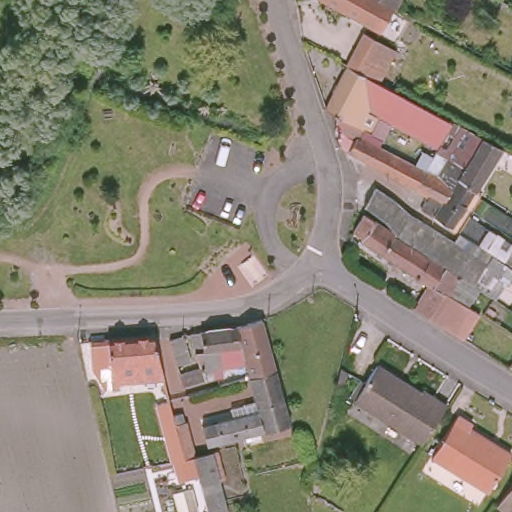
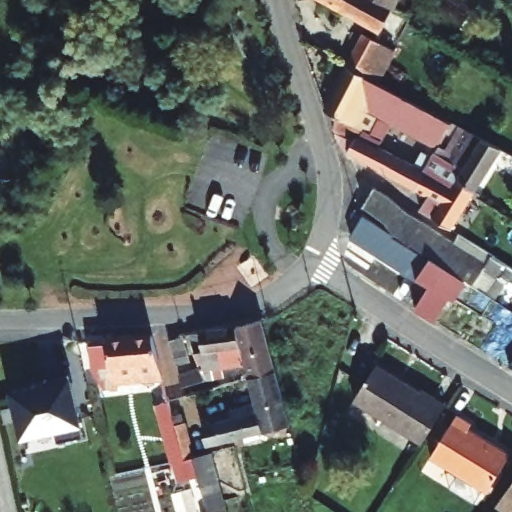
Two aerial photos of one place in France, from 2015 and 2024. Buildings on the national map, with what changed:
unchanged [(400,7),(388,30),(335,0),(388,0),(400,7)]
unchanged [(402,7),(400,7),(388,0),(405,0),(402,7)]
unchanged [(427,169),(440,147),(365,103),(355,122),(331,109),(364,32),(387,45),(370,75),(505,149),(462,219),(349,155),(362,135),(427,169)]
unchanged [(472,251),(442,296),(353,236),(375,189),(472,251)]
unchanged [(477,252),(490,230),(499,235),(512,243),(512,250),(512,286),(502,281),(494,291),(482,281),(470,306),(479,312),(464,338),(414,308),(425,284),(442,296),(472,251),(477,252)]
unchanged [(185,383),(182,371),(204,365),(199,347),(208,345),(204,329),(240,322),(244,322),(265,317),(279,365),(252,372),(248,356),(230,361),(219,364),(221,372),(210,377),(185,383)]
unchanged [(158,334),(168,372),(144,374),(143,377),(124,378),(125,383),(114,383),(112,361),(97,362),(95,337),(151,334),(158,334)]
unchanged [(425,442),(357,397),(379,362),(447,407),(425,442)]
unchanged [(512,363),(512,366),(510,365),(512,363)]
unchanged [(267,422),(268,427),(212,441),(207,421),(249,411),(247,402),(259,398),(252,372),(279,365),(282,376),(292,416),(267,422)]
new [(44,383),(42,380),(67,374),(81,435),(56,441),(53,427),(22,435),(11,391),(44,383)]
unchanged [(159,383),(170,380),(180,416),(167,418),(159,383)]
unchanged [(190,456),(180,416),(187,413),(197,454),(190,456)]
unchanged [(459,415),(472,423),(468,428),(510,457),(485,493),(430,454),(459,415)]
unchanged [(216,448),(218,457),(224,477),(205,483),(197,454),(216,448)]
unchanged [(512,487),(512,489),(511,488),(512,487)]

